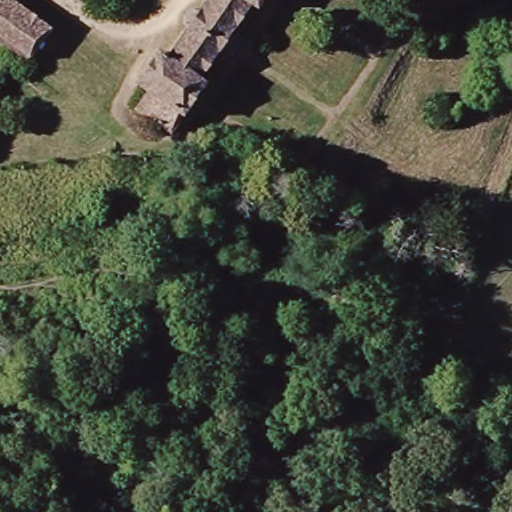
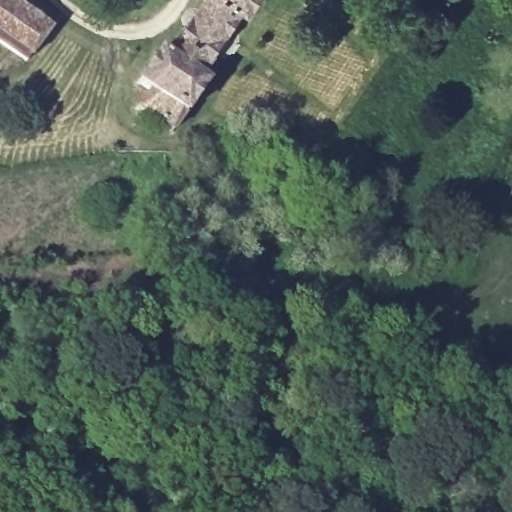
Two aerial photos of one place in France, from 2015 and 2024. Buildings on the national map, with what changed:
unchanged [(43,22),(20,56),(0,43),(0,0),(10,0),(43,22)]
unchanged [(197,72),(205,78),(170,129),(140,108),(152,91),(136,79),(159,46),(167,53),(204,0),(248,0),(197,72)]
unchanged [(253,3),(248,0),(255,0),(253,3)]

